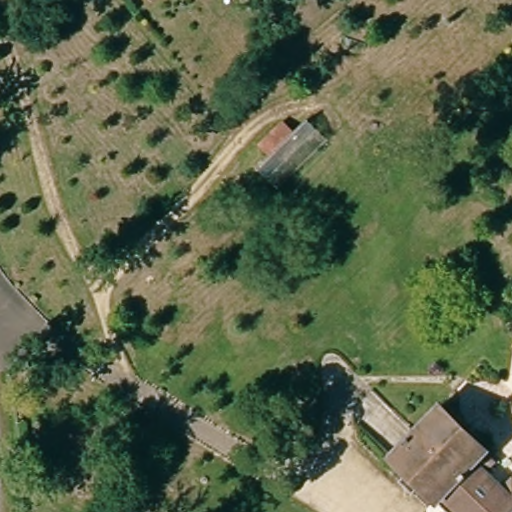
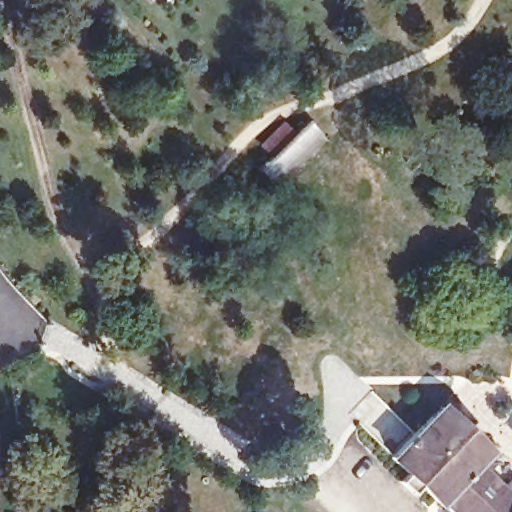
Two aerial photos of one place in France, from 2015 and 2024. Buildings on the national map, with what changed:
unchanged [(258,145),(283,121),(294,133),(268,156),(258,145)]
unchanged [(446,498),(425,475),(415,485),(402,471),(411,461),(395,444),(446,394),(508,456),(502,464),(512,475),(512,512),(440,512),(436,508),(446,498)]

